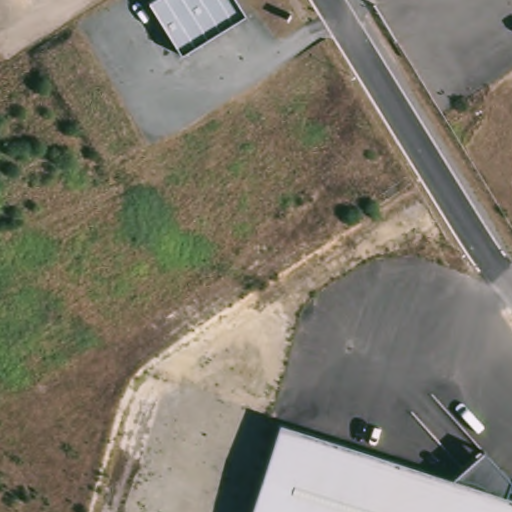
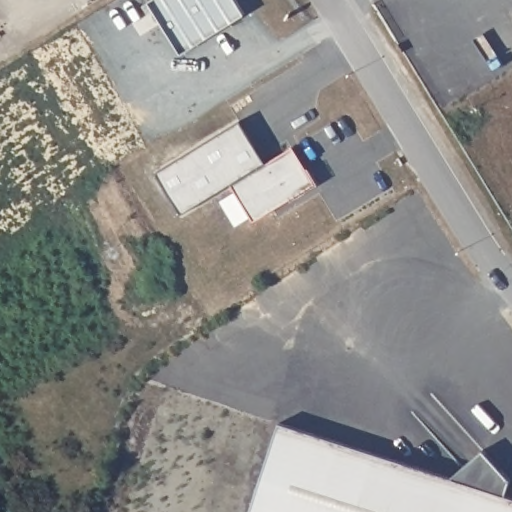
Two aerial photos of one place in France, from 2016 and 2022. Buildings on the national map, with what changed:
unchanged [(147,2),(151,0),(234,0),(244,16),(181,55),(147,2)]
new [(240,121),(266,164),(293,147),(316,185),(253,222),(231,185),(181,216),(156,173),(240,121)]
unchanged [(278,422),(450,477),(482,450),(511,481),(506,497),(512,498),(512,512),(249,512),(278,422)]

